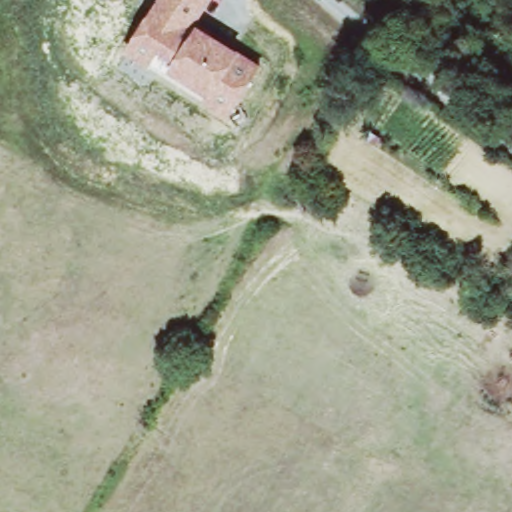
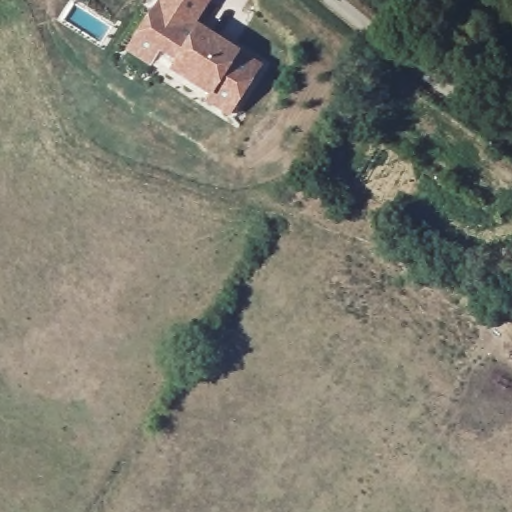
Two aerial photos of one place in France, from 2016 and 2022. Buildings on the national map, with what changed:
unchanged [(262,65),(229,119),(126,53),(159,0),(213,0),(200,24),(262,65)]

